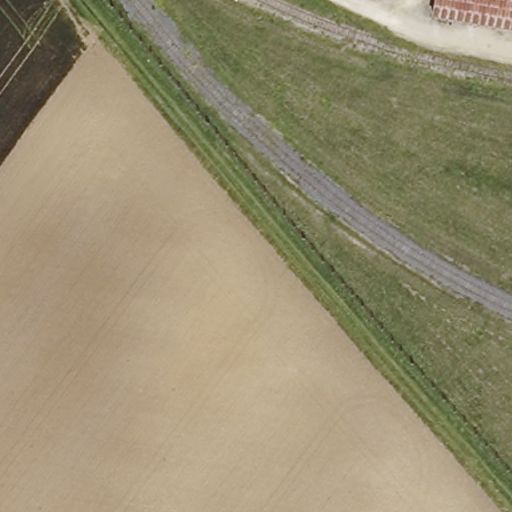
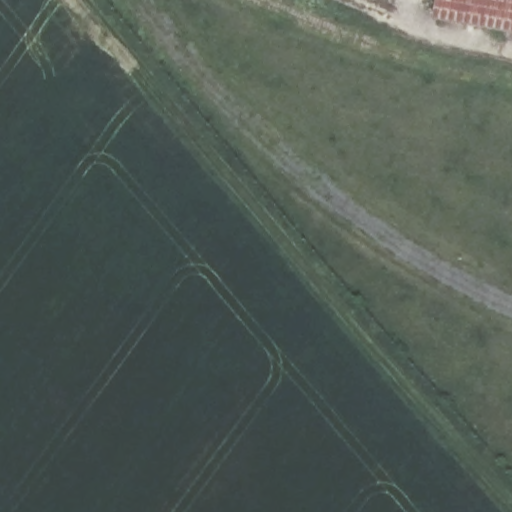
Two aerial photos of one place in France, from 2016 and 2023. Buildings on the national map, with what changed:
unchanged [(432,24),(435,0),(512,0),(512,37),(432,24)]

